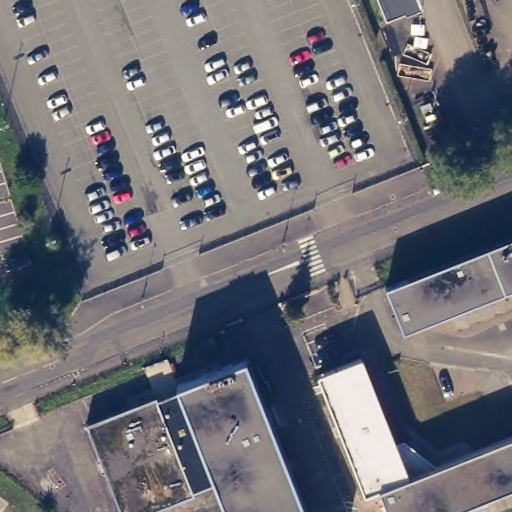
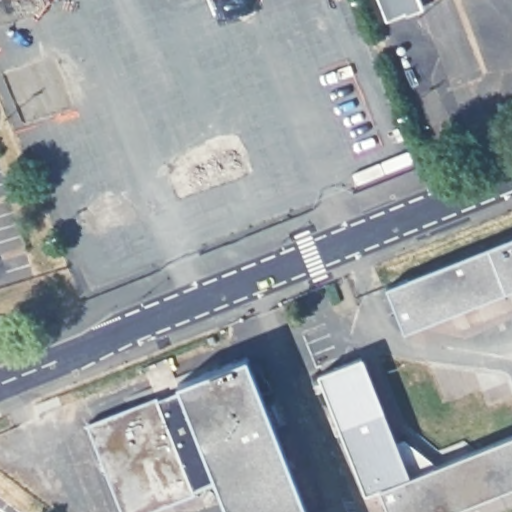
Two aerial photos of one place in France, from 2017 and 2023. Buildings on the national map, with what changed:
unchanged [(397,21),(388,0),(424,0),(427,10),(397,21)]
unchanged [(410,327),(392,282),(512,234),(512,287),(410,327)]
unchanged [(217,477),(195,486),(196,489),(139,512),(124,512),(87,419),(157,391),(159,395),(180,385),(177,379),(247,351),(311,512),(231,512),(217,477)]
unchanged [(512,431),(512,482),(435,512),(391,512),(380,482),(366,488),(318,371),(362,352),(396,441),(404,438),(417,448),(434,461),(512,431)]

